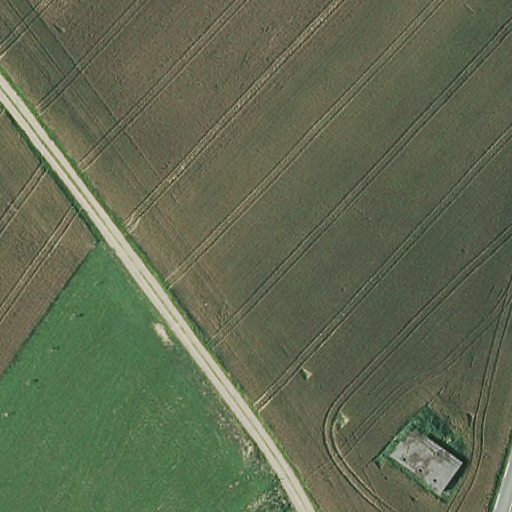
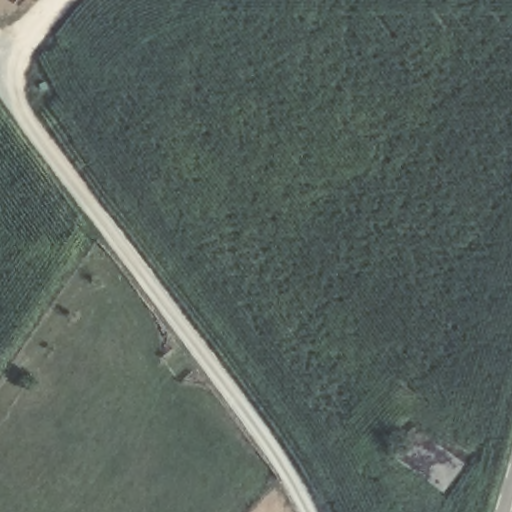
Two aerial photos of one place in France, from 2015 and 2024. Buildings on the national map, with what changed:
unchanged [(413,430),(471,467),(451,497),(393,458),(413,430)]

